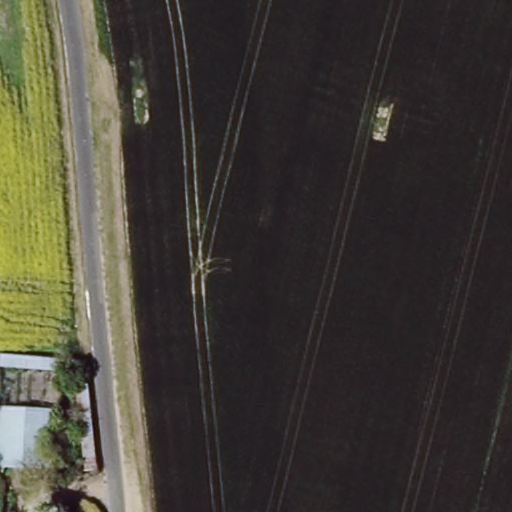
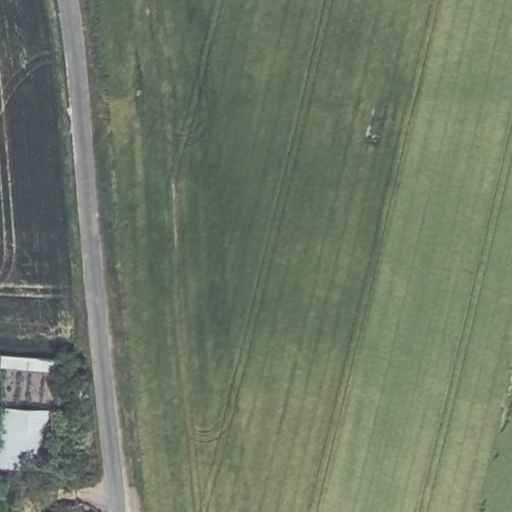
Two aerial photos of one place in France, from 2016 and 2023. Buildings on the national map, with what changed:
unchanged [(53,469),(0,465),(0,407),(55,408),(53,469)]

